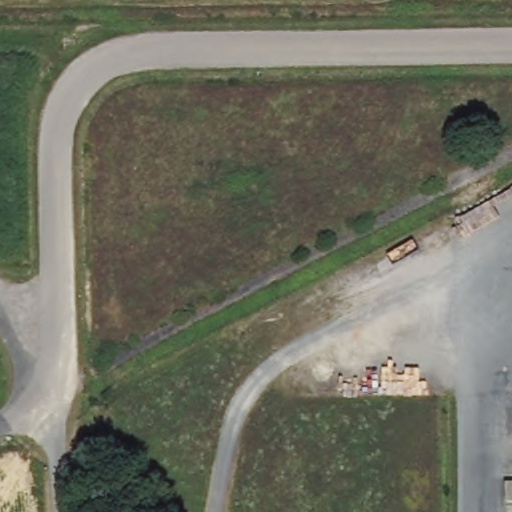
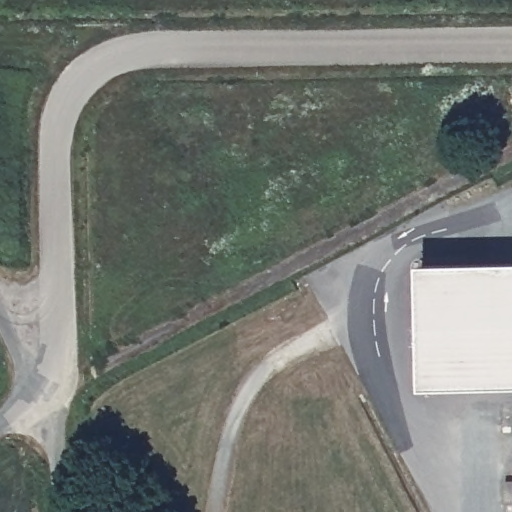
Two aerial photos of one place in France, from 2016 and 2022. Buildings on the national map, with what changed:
new [(426,389),(421,266),(512,264),(512,387),(426,389)]

